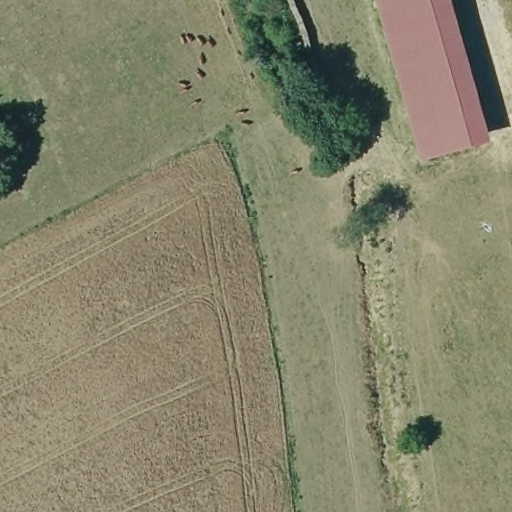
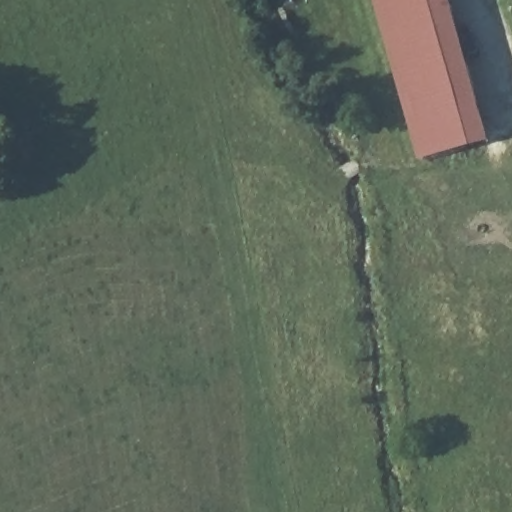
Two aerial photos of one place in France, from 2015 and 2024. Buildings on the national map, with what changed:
unchanged [(488,142),(420,162),(377,0),(450,0),(488,142)]

